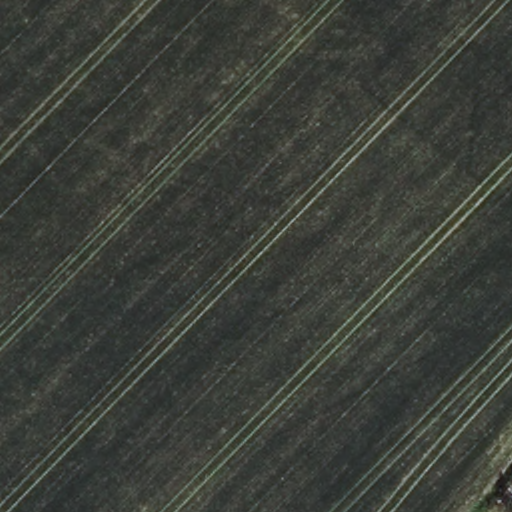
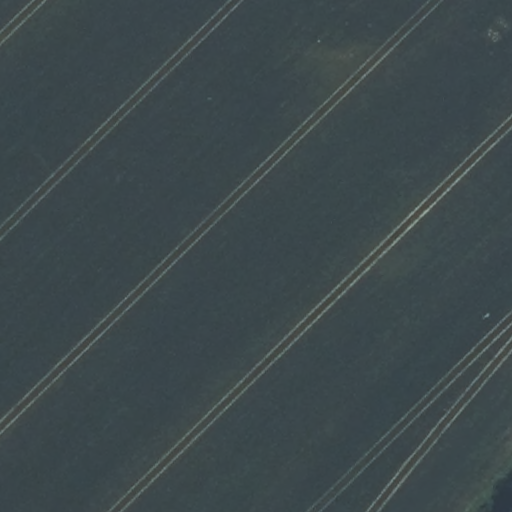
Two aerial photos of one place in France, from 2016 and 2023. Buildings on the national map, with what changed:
[]

